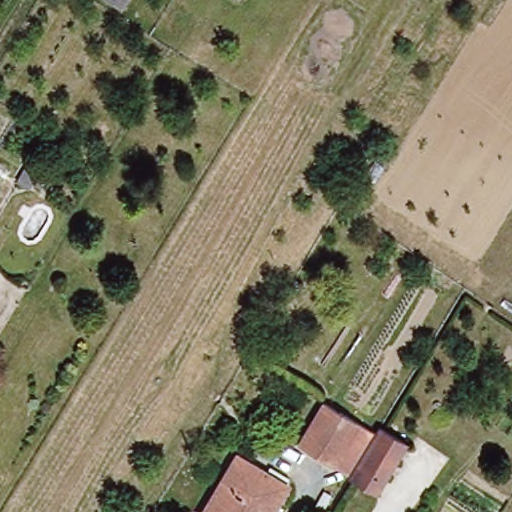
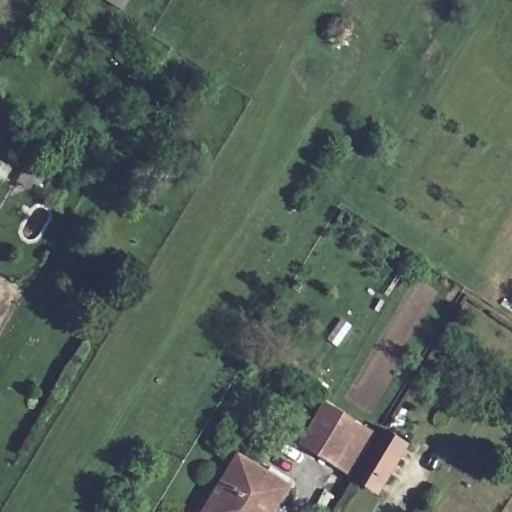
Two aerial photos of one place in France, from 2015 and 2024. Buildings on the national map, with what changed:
unchanged [(325,400),(376,430),(380,425),(409,442),(380,491),(298,441),(325,400)]
unchanged [(240,453),(270,472),(276,465),(293,476),(290,483),(292,486),(276,512),(205,512),(240,453)]

